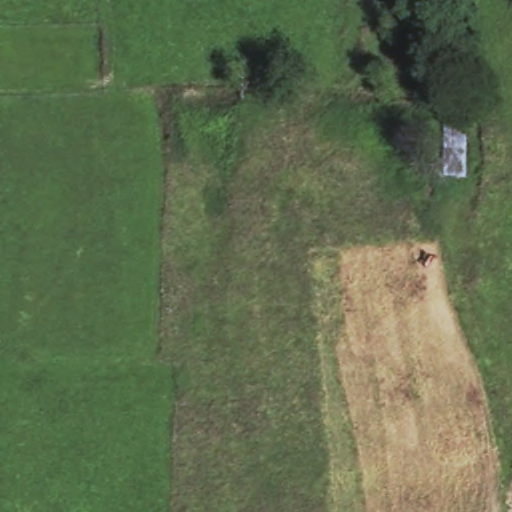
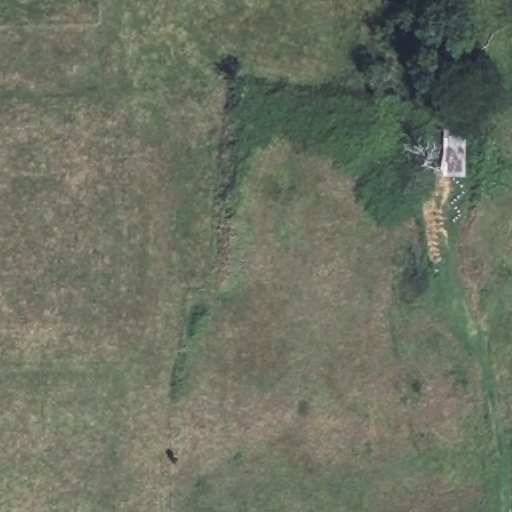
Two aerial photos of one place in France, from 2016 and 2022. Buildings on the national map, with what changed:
unchanged [(465,170),(425,169),(427,137),(466,136),(465,170)]

